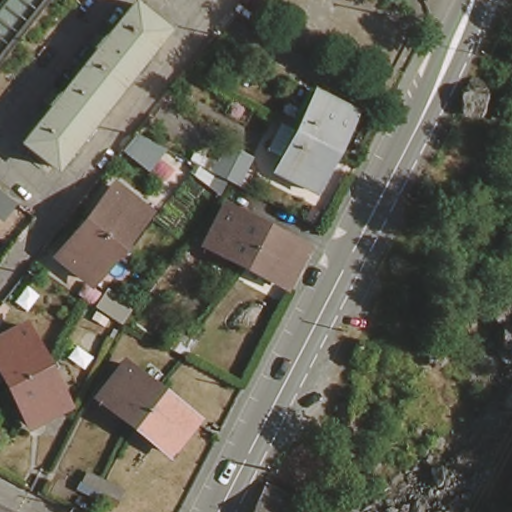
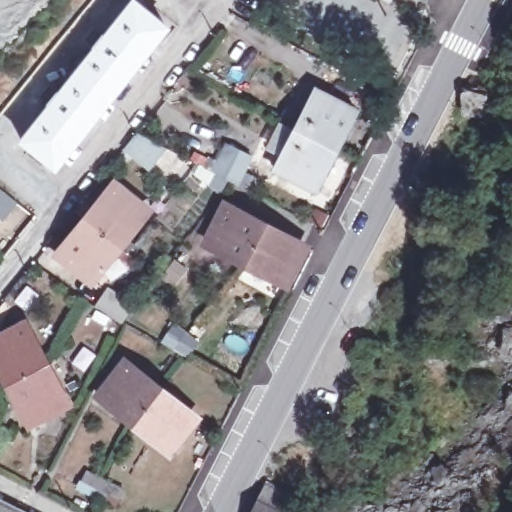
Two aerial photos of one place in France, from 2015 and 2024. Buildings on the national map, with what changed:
unchanged [(52,164),(22,140),(131,5),(161,29),(52,164)]
unchanged [(315,87),(359,109),(338,147),(294,126),(315,87)]
unchanged [(316,187),(274,165),(294,126),(338,147),(316,187)]
unchanged [(150,163),(123,147),(138,130),(166,142),(150,163)]
unchanged [(221,168),(232,146),(259,160),(248,182),(240,177),(221,168)]
unchanged [(122,245),(87,219),(113,187),(148,212),(122,245)]
unchanged [(0,218),(0,197),(11,205),(0,218)]
unchanged [(242,260),(205,242),(227,204),(263,222),(242,260)]
unchanged [(122,245),(96,277),(61,250),(87,219),(122,245)]
unchanged [(263,222),(303,243),(282,281),(242,260),(263,222)]
unchanged [(35,366),(7,382),(0,371),(0,337),(22,324),(42,361),(35,366)]
unchanged [(174,338),(178,330),(190,336),(202,342),(197,351),(184,343),(174,338)]
unchanged [(370,341),(384,348),(376,363),(362,356),(370,341)]
unchanged [(64,398),(28,418),(7,382),(35,366),(42,361),(64,398)]
unchanged [(139,423),(102,396),(130,361),(167,387),(139,423)]
unchanged [(139,423),(167,387),(198,412),(170,447),(139,423)]
unchanged [(3,449),(0,447),(0,435),(9,441),(3,449)]
unchanged [(82,484),(87,476),(106,485),(124,493),(119,502),(101,493),(82,484)]
unchanged [(299,497),(290,512),(247,512),(265,480),(299,497)]
unchanged [(17,512),(0,512),(0,504),(17,512)]

